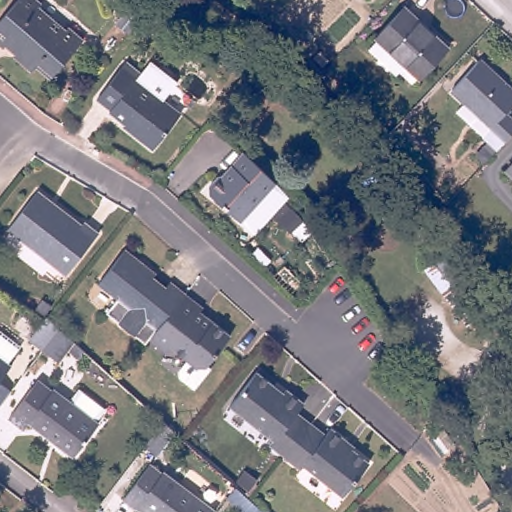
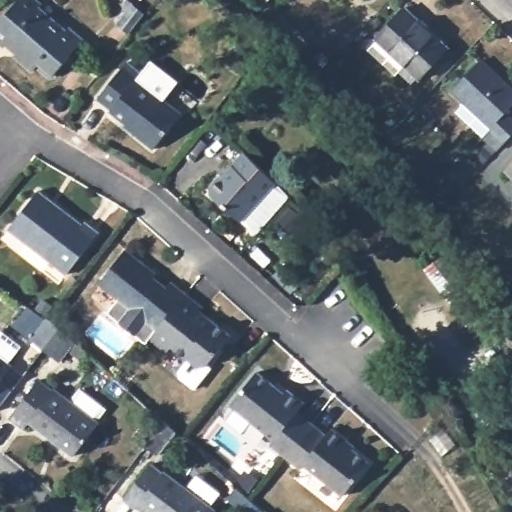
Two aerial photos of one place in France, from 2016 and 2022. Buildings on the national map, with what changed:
unchanged [(33,0),(40,6),(37,9),(64,32),(67,29),(81,41),(49,80),(36,69),(32,73),(14,57),(17,54),(7,46),(4,49),(0,46),(0,22),(19,0),(33,0)]
unchanged [(121,5),(125,0),(126,0),(130,5),(142,16),(127,34),(115,24),(126,10),(121,5)]
unchanged [(398,72),(395,76),(368,51),(377,41),(375,39),(403,9),(448,50),(420,81),(417,79),(410,85),(398,72)]
unchanged [(462,87),(490,57),(512,77),(512,142),(507,147),(493,134),(493,132),(466,109),(475,100),(462,87)]
unchanged [(192,115),(162,155),(97,101),(130,66),(192,115)]
unchanged [(261,167),(275,182),(240,222),(210,195),(209,187),(218,177),(225,176),(233,167),(232,166),(245,152),(261,167)]
unchanged [(37,192),(79,225),(83,222),(98,233),(65,276),(8,229),(37,192)]
unchanged [(110,314),(121,300),(102,286),(129,251),(149,266),(145,270),(170,288),(175,283),(189,294),(185,300),(180,305),(153,341),(150,345),(110,314)]
unchanged [(449,257),(490,311),(472,325),(431,270),(449,257)]
unchanged [(206,308),(201,315),(209,321),(211,318),(234,336),(210,367),(200,368),(175,348),(170,354),(153,341),(180,305),(185,300),(189,294),(206,308)]
unchanged [(47,320),(59,330),(44,349),(32,340),(47,320)]
unchanged [(12,340),(13,346),(22,352),(12,365),(15,367),(0,388),(0,333),(3,332),(12,340)]
unchanged [(302,431),(285,452),(270,440),(273,435),(230,400),(257,366),(275,380),(273,382),(282,390),(287,384),(305,398),(297,407),(311,418),(302,431)]
unchanged [(37,383),(51,393),(53,391),(71,405),(81,393),(106,411),(96,423),(99,426),(75,457),(30,423),(24,430),(10,419),(37,383)]
unchanged [(325,431),(331,423),(345,435),(343,437),(369,457),(343,491),(304,460),(300,464),(285,452),(302,431),(311,418),(325,431)]
unchanged [(164,422),(176,433),(157,457),(145,447),(164,422)]
unchanged [(135,510),(124,501),(150,467),(161,475),(164,473),(214,512),(139,512),(135,510)]

